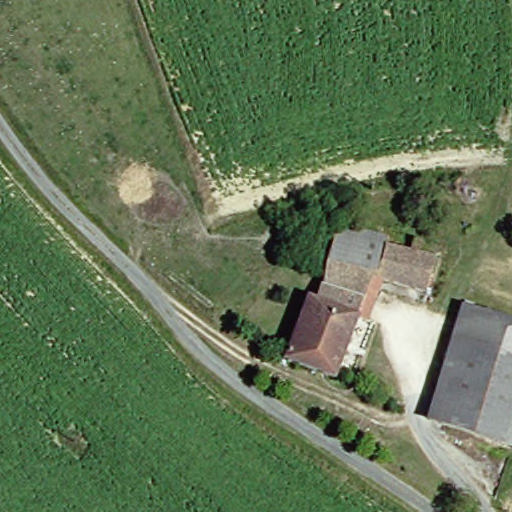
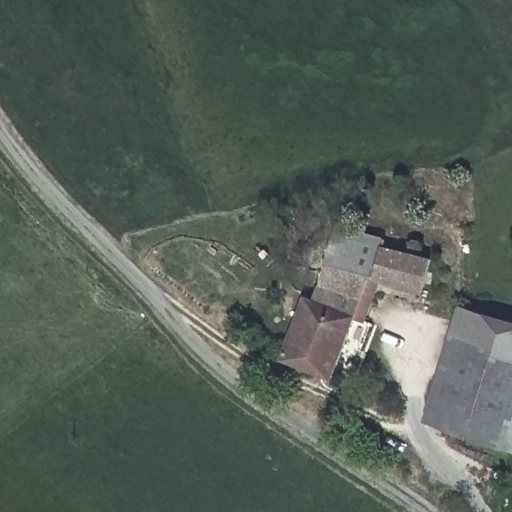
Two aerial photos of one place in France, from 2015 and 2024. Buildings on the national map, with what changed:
unchanged [(313,282),(332,226),(390,246),(390,251),(411,258),(413,248),(426,250),(424,261),(440,267),(431,302),(362,281),(356,299),(313,282)]
unchanged [(313,282),(356,299),(348,321),(306,304),(313,282)]
unchanged [(298,302),(306,304),(348,321),(328,380),(277,359),(298,302)]
unchanged [(418,423),(449,311),(512,328),(512,454),(418,423)]

